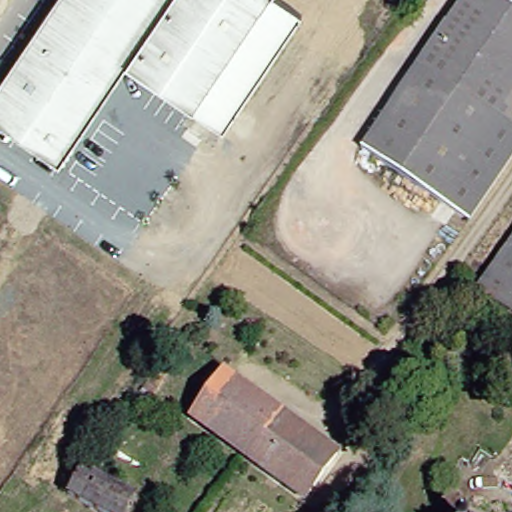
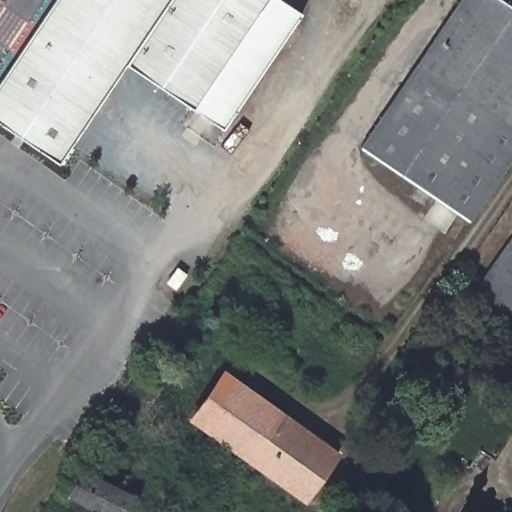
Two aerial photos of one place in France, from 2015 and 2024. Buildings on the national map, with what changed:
unchanged [(55,161),(0,124),(0,73),(50,0),(263,0),(189,108),(122,63),(55,161)]
unchanged [(221,130),(189,108),(263,0),(286,0),(305,13),(221,130)]
unchanged [(465,220),(356,146),(455,0),(497,0),(512,10),(512,150),(465,220)]
unchanged [(471,289),(512,229),(512,317),(471,289)]
unchanged [(459,304),(471,289),(512,317),(512,342),(459,304)]
unchanged [(157,388),(147,381),(156,368),(167,375),(157,388)]
unchanged [(215,372),(328,453),(294,501),(181,419),(215,372)]
unchanged [(130,497),(121,512),(98,512),(65,495),(78,469),(130,497)]

